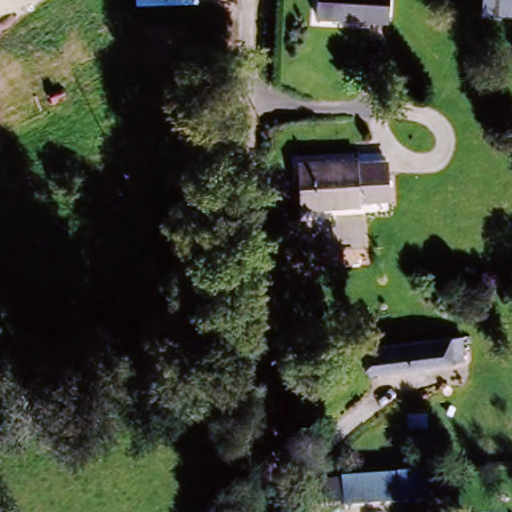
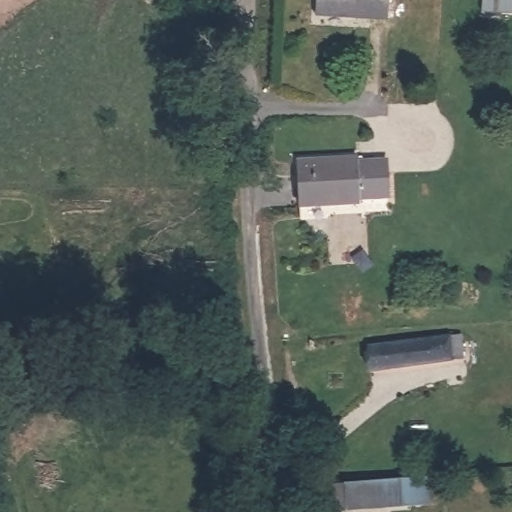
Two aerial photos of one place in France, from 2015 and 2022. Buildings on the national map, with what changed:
unchanged [(314,0),(385,0),(385,11),(315,14),(314,0)]
unchanged [(512,11),(481,13),(480,0),(512,0),(512,11)]
unchanged [(350,158),(355,199),(300,205),(295,158),(350,154),(350,158)]
unchanged [(350,158),(380,156),(384,196),(355,199),(350,158)]
unchanged [(371,342),(460,334),(462,358),(376,364),(371,342)]
unchanged [(387,479),(388,497),(343,501),(342,482),(387,479)]

